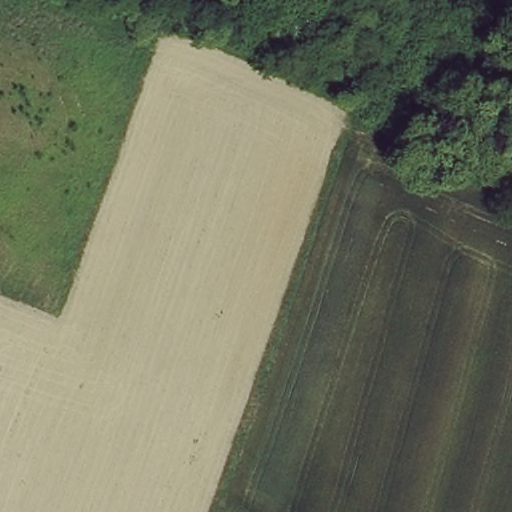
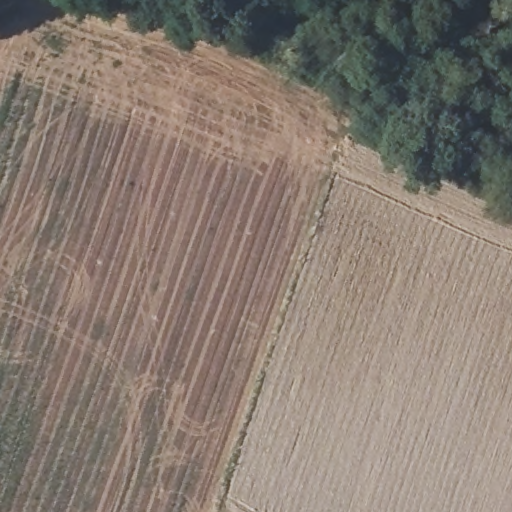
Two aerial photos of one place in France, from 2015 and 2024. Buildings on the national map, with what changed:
[]

